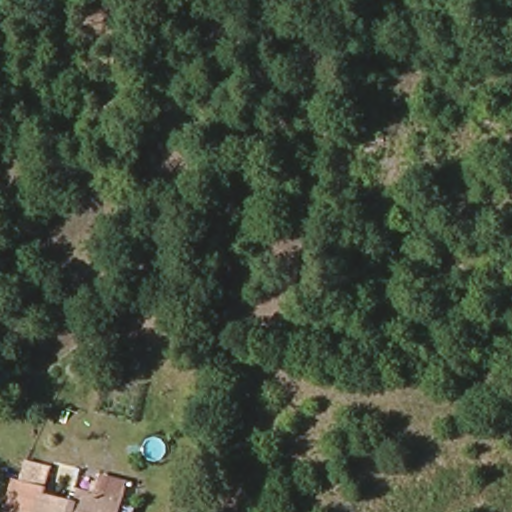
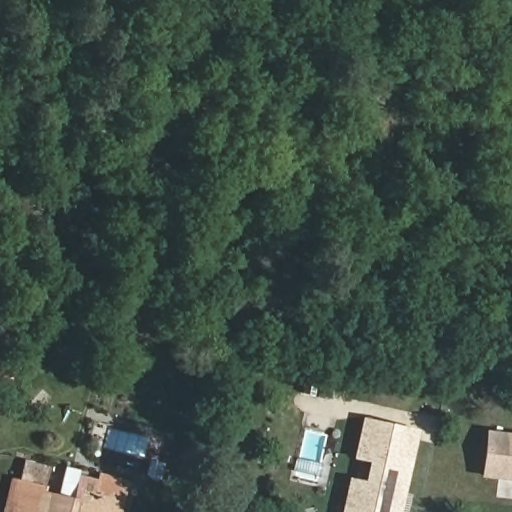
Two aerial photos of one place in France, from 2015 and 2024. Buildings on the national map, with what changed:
new [(418,431),(400,512),(341,512),(348,478),(363,482),(367,463),(352,460),(362,417),(418,431)]
new [(486,429),(512,432),(512,482),(481,478),(486,429)]
unchanged [(75,503),(77,493),(92,497),(100,478),(126,483),(118,512),(37,512),(42,496),(75,503)]

